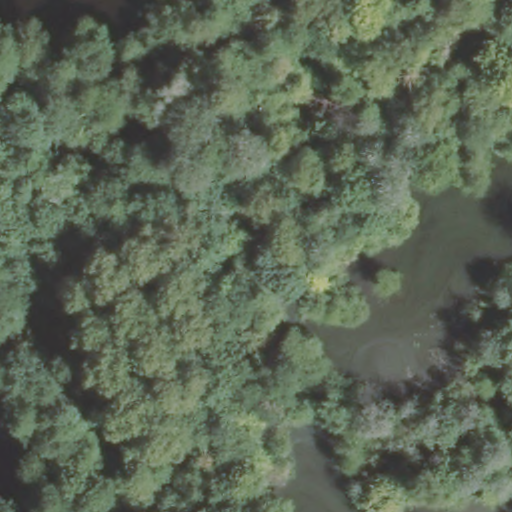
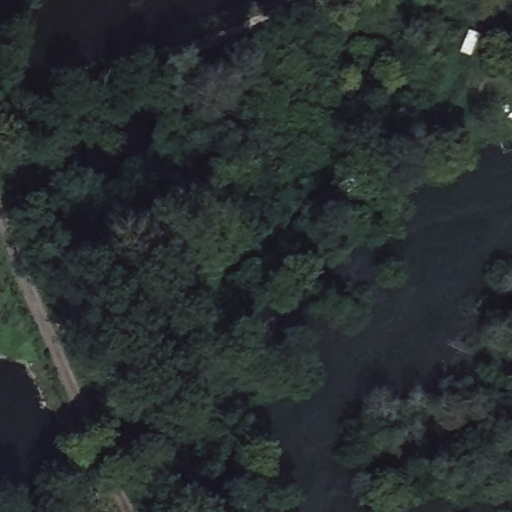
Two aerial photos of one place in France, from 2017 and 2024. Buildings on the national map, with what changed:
unchanged [(130,89),(139,114),(114,123),(105,98),(130,89)]

